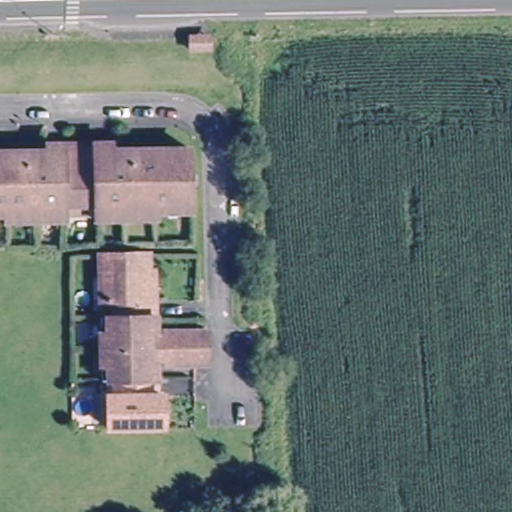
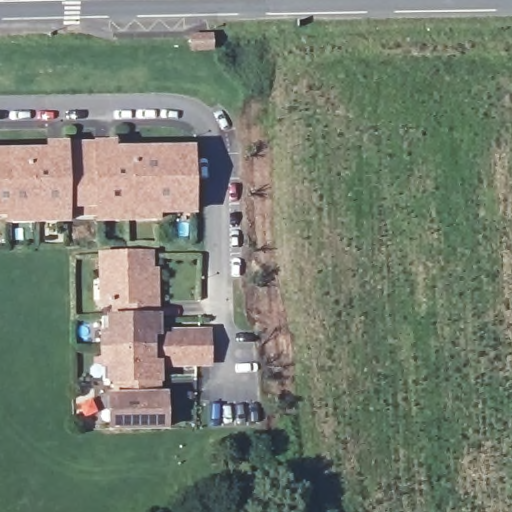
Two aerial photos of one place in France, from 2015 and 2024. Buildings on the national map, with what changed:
unchanged [(49,152),(49,145),(113,147),(112,154),(193,156),(191,217),(152,215),(151,226),(95,226),(95,210),(64,208),(63,226),(1,225),(1,217),(0,217),(0,152),(49,152)]
unchanged [(111,325),(111,309),(100,308),(101,259),(150,261),(151,309),(156,309),(156,403),(163,402),(162,438),(103,437),(103,403),(109,403),(109,386),(98,386),(99,325),(111,325)]
unchanged [(207,341),(206,372),(162,372),(162,340),(207,341)]

